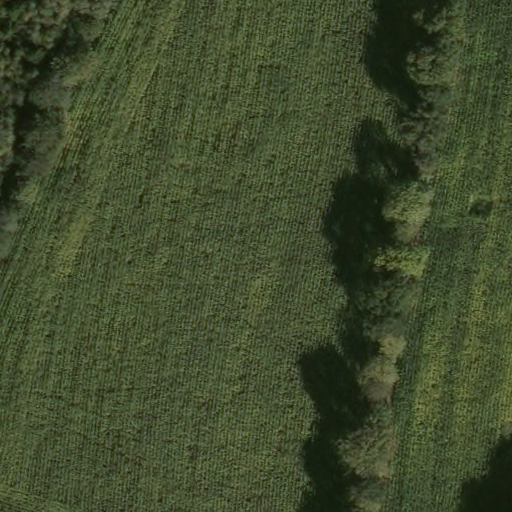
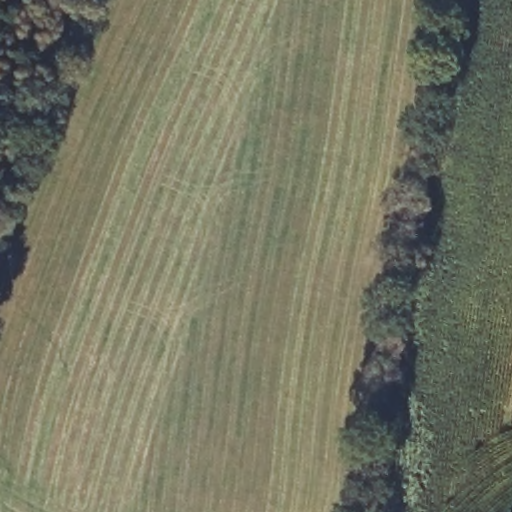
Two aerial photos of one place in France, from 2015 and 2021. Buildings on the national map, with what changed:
[]

